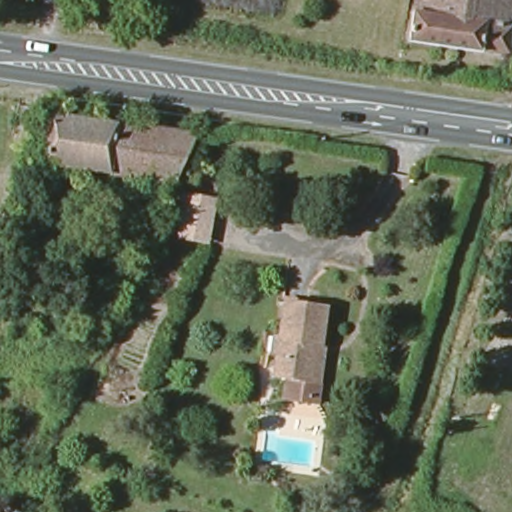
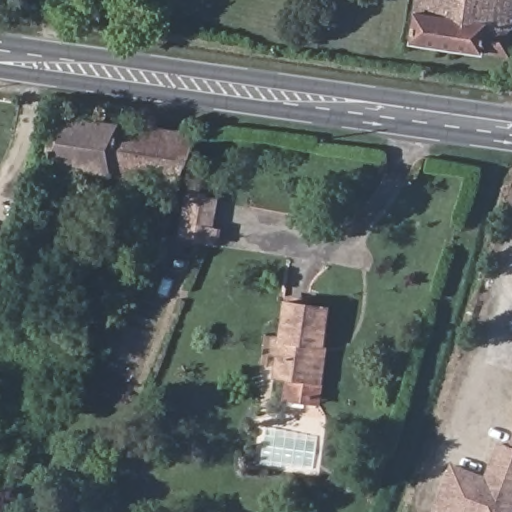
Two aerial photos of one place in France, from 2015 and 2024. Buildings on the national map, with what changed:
unchanged [(509,54),(484,51),(483,53),(412,41),(417,0),(512,0),(512,32),(509,54)]
unchanged [(44,167),(51,118),(156,134),(149,183),(44,167)]
unchanged [(149,183),(156,134),(197,139),(174,186),(149,183)]
unchanged [(173,202),(179,189),(201,196),(192,250),(166,242),(173,202)]
unchanged [(284,399),(288,378),(273,376),(284,302),(325,308),(320,348),(328,349),(322,384),(318,404),(284,399)]
new [(434,512),(431,510),(449,461),(484,473),(496,441),(508,445),(512,433),(512,512),(434,512)]

